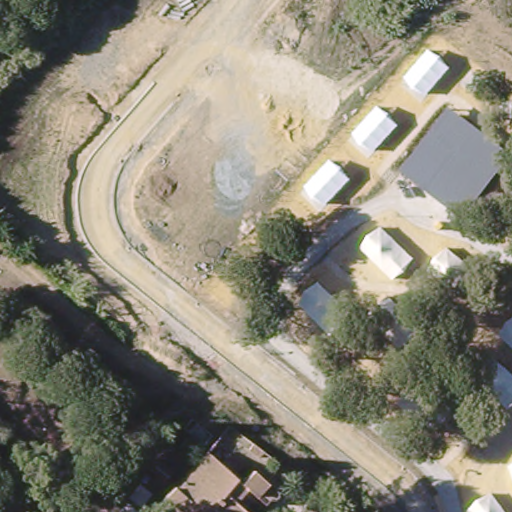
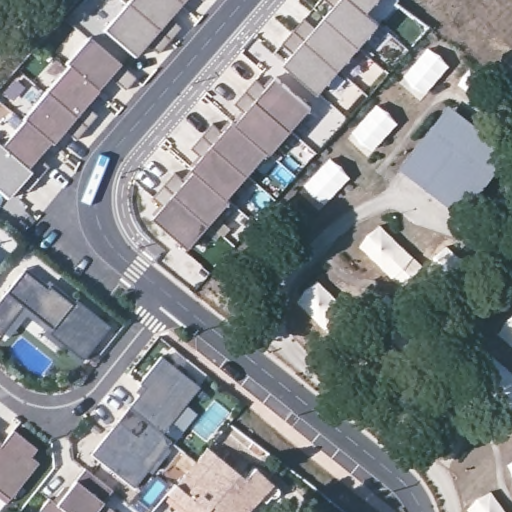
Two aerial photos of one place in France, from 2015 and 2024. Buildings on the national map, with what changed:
new [(104,31),(132,0),(185,0),(170,16),(180,29),(158,52),(149,43),(134,59),(104,31)]
new [(286,66),(297,53),(286,44),(305,20),(317,29),(337,7),(328,0),(378,0),(366,14),(379,26),(318,93),(286,66)]
new [(87,37),(134,79),(124,91),(108,77),(95,92),(66,66),(64,64),(87,37)]
new [(66,66),(95,92),(96,92),(84,106),(96,116),(85,129),(44,93),(66,66)]
new [(37,106),(35,104),(44,93),(85,129),(76,139),(62,126),(48,143),(23,121),(37,106)]
new [(155,217),(162,209),(153,200),(174,175),(184,184),(196,171),(193,169),(202,158),(192,150),(214,126),(223,134),(231,124),(235,127),(246,114),(236,105),(245,95),(255,102),(292,133),(191,248),(155,217)]
unchanged [(451,106),(512,154),(466,218),(401,171),(451,106)]
new [(23,121),(48,143),(36,157),(47,167),(36,180),(0,148),(0,147),(23,121)]
new [(36,180),(27,192),(19,186),(7,200),(0,194),(0,148),(36,180)]
new [(21,270),(45,288),(47,286),(71,305),(75,301),(108,327),(80,362),(46,334),(50,330),(20,306),(0,330),(0,295),(21,270)]
demolished [(512,347),(512,400),(509,403),(483,381),(512,347)]
new [(163,435),(132,410),(146,391),(139,385),(162,357),(200,389),(163,435)]
new [(91,457),(139,396),(135,393),(141,386),(146,391),(132,410),(163,435),(186,407),(196,415),(174,445),(171,443),(168,447),(170,450),(151,474),(147,472),(133,489),(91,457)]
new [(0,501),(0,444),(3,446),(14,432),(37,450),(30,458),(39,465),(6,506),(0,501)]
unchanged [(259,458),(248,450),(254,443),(265,452),(259,458)]
unchanged [(247,512),(185,512),(165,495),(183,476),(206,451),(242,482),(253,470),(276,491),(277,492),(277,493),(277,495),(277,496),(276,497),(275,497),(274,498),(273,498),(272,498),(271,498),(270,498),(265,503),(247,488),(236,502),(247,512)]
new [(56,507),(75,483),(86,470),(113,491),(103,504),(113,512),(40,512),(49,502),(56,507)]

